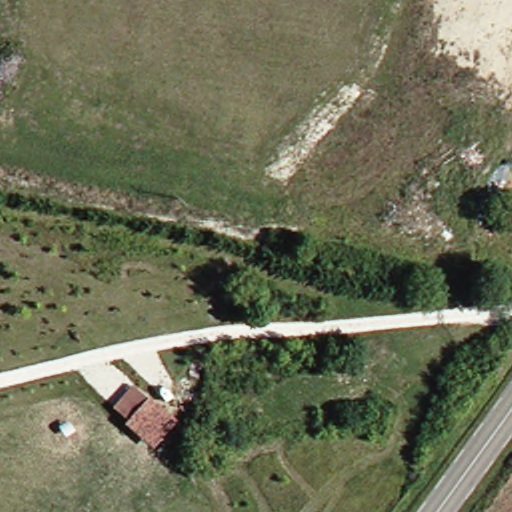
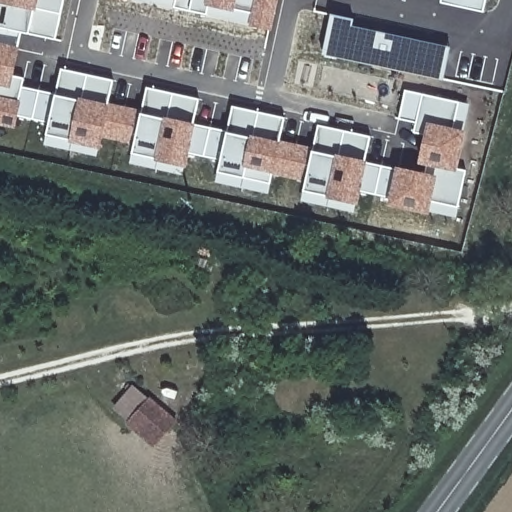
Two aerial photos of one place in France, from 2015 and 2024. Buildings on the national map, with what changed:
new [(56,40),(29,34),(20,32),(14,75),(24,77),(21,86),(55,92),(61,67),(114,80),(109,101),(142,108),(146,87),(200,99),(193,123),(227,129),(232,105),(285,117),(281,140),(312,146),(317,124),(371,135),(365,160),(425,173),(427,166),(416,163),(423,136),(413,134),(416,121),(399,118),(405,89),(468,103),(463,130),(467,131),(457,167),(467,170),(458,218),(430,211),(429,215),(388,206),(390,198),(361,192),(357,205),(354,213),(300,201),(304,190),(305,181),(272,174),(269,194),(215,182),(217,172),(219,159),(189,153),(186,167),(184,176),(130,163),(133,153),(134,143),(103,136),(100,149),(98,156),(44,145),(46,134),(49,121),(18,116),(16,128),(0,125),(0,0),(66,0),(56,40)]
new [(271,32),(248,27),(250,13),(210,6),(207,15),(174,7),(176,0),(279,0),(271,32)]
new [(484,13),(440,3),(441,0),(487,0),(484,13)]
new [(444,80),(323,55),(330,14),(353,19),(352,25),(450,46),(444,80)]
unchanged [(146,454),(117,429),(122,424),(106,412),(129,387),(143,399),(148,396),(176,423),(146,454)]

